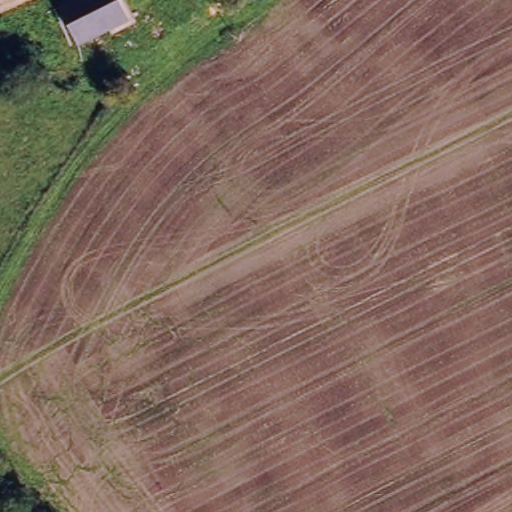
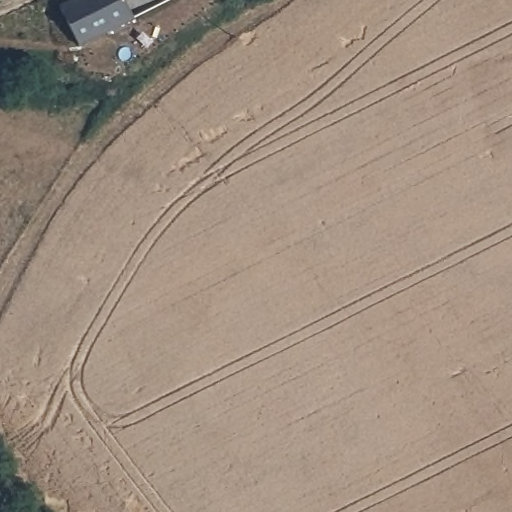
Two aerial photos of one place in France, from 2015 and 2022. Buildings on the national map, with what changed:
unchanged [(81,49),(62,11),(85,0),(119,0),(132,25),(81,49)]

